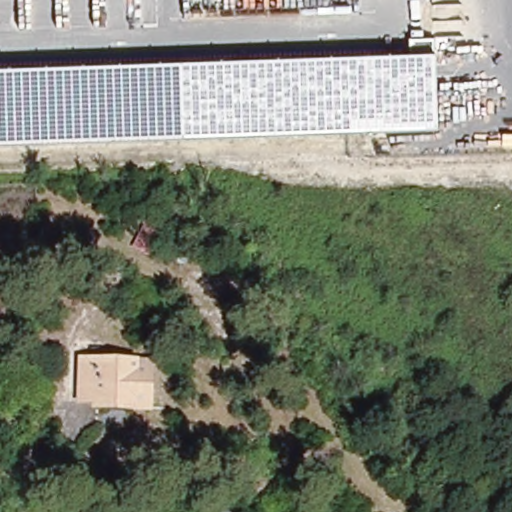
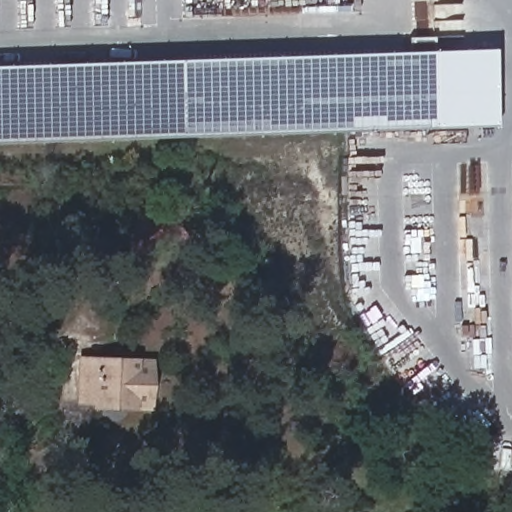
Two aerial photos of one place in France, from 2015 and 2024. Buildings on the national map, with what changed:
unchanged [(438,128),(0,144),(0,67),(410,52),(409,39),(433,37),(434,52),(438,128)]
new [(497,125),(438,128),(434,52),(496,49),(497,125)]
unchanged [(150,362),(149,408),(99,406),(99,400),(82,399),(83,359),(150,362)]

